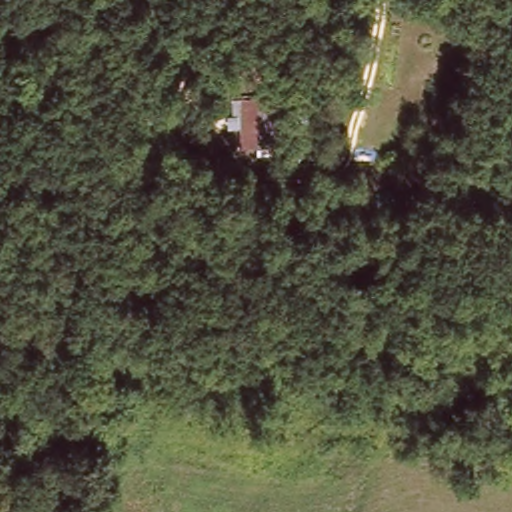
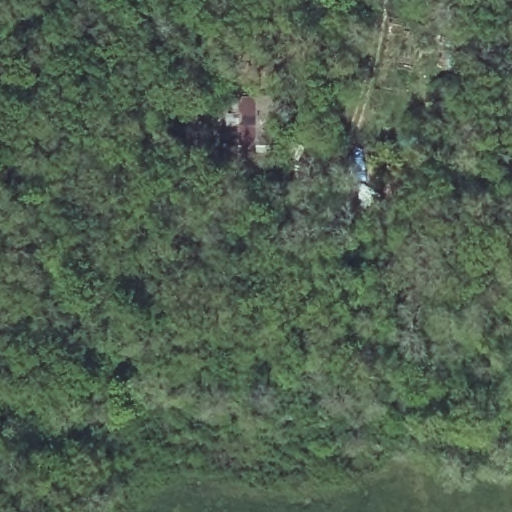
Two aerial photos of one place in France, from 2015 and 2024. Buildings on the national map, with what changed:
unchanged [(248,93),(262,95),(256,144),(241,142),(248,93)]

